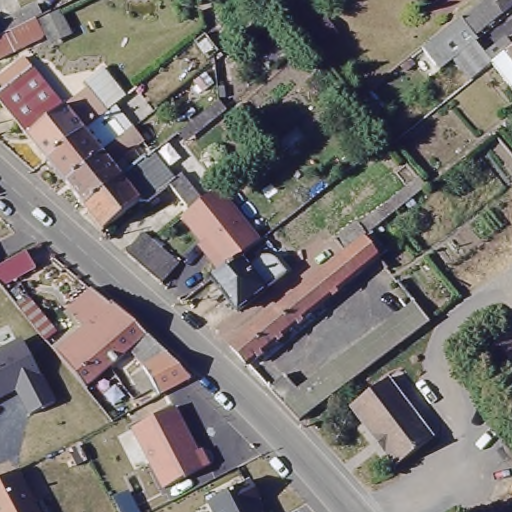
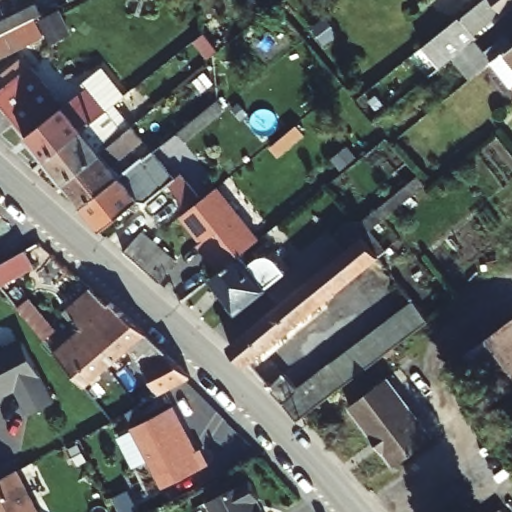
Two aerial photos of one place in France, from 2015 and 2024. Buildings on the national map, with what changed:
unchanged [(457,19),(459,21),(485,0),(512,0),(512,6),(473,37),(475,39),(434,72),(417,53),(437,36),(457,19)]
unchanged [(45,15),(6,35),(0,38),(0,27),(0,24),(40,4),(45,15)]
unchanged [(45,15),(54,11),(55,14),(59,22),(44,30),(46,36),(41,40),(0,60),(0,38),(6,35),(45,15)]
unchanged [(512,46),(512,87),(492,62),(508,49),(512,46)]
unchanged [(121,178),(85,208),(66,185),(47,161),(0,103),(0,93),(31,68),(63,107),(88,88),(85,83),(105,66),(128,94),(107,112),(115,123),(125,135),(135,128),(143,139),(112,166),(121,178)]
unchanged [(183,129),(220,99),(226,108),(188,139),(181,131),(183,129)]
unchanged [(121,178),(178,133),(217,182),(205,193),(194,202),(175,181),(150,203),(140,202),(105,231),(85,208),(121,178)]
unchanged [(356,222),(359,224),(420,176),(427,185),(365,237),(363,238),(346,251),(335,239),(356,222)]
unchanged [(208,256),(212,253),(183,217),(185,216),(210,196),(218,189),(261,241),(239,259),(222,273),(208,256)]
unchanged [(150,273),(138,263),(133,258),(127,253),(144,234),(150,238),(153,241),(155,243),(166,252),(177,262),(161,283),(150,273)]
unchanged [(300,288),(309,281),(345,251),(346,251),(363,238),(365,237),(381,259),(373,265),(367,270),(357,278),(250,367),(232,347),(300,288)]
unchanged [(36,267),(2,286),(0,283),(0,266),(28,251),(36,267)]
unchanged [(222,273),(239,259),(247,268),(257,261),(268,260),(279,264),(286,273),(238,313),(212,281),(222,273)]
unchanged [(80,326),(65,308),(87,288),(104,306),(109,302),(122,313),(63,365),(52,351),(80,326)]
unchanged [(31,300),(57,331),(47,340),(20,308),(31,300)]
unchanged [(333,360),(345,351),(357,341),(370,332),(380,324),(393,313),(405,305),(420,325),(418,326),(408,334),(395,344),(385,352),(372,361),(360,371),(349,379),(337,389),(324,399),(315,406),(307,411),(300,417),(285,400),(272,386),(286,371),(299,387),(310,379),(321,370),(333,360)]
unchanged [(122,313),(144,334),(190,377),(185,380),(143,402),(126,376),(137,368),(125,351),(124,349),(81,387),(63,365),(122,313)]
unchanged [(510,321),(512,320),(512,409),(470,352),(510,321)]
unchanged [(56,402),(28,416),(16,391),(0,400),(0,347),(20,337),(56,402)]
unchanged [(390,379),(435,439),(397,467),(352,407),(390,379)]
unchanged [(133,426),(173,405),(196,450),(201,447),(209,463),(165,486),(133,426)]
unchanged [(18,469),(41,512),(0,512),(0,479),(10,474),(18,469)]
unchanged [(263,506),(261,507),(264,512),(212,512),(206,502),(250,479),(263,506)]
unchanged [(503,510),(504,512),(501,512),(503,510)]

